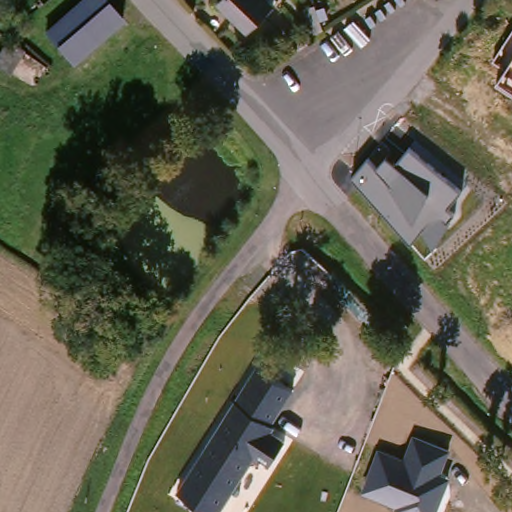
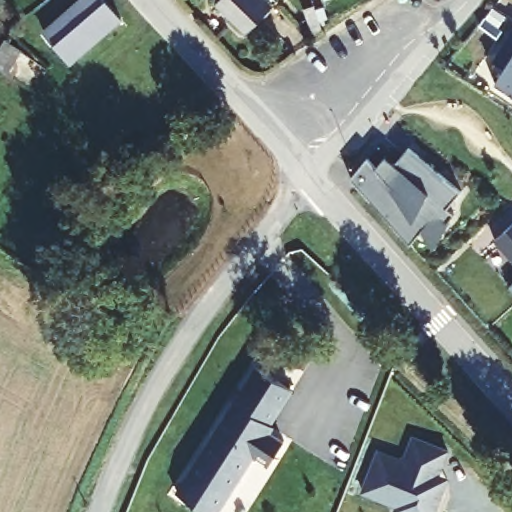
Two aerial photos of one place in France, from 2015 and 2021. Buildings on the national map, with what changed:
unchanged [(103,0),(120,20),(70,63),(40,29),(74,0),(103,0)]
unchanged [(244,34),(214,5),(218,0),(262,0),(270,9),(244,34)]
unchanged [(301,6),(325,0),(333,25),(308,33),(301,6)]
unchanged [(498,80),(506,69),(492,62),(512,30),(512,99),(495,87),(498,80)]
unchanged [(422,229),(411,242),(351,177),(367,159),(377,167),(388,155),(397,163),(410,149),(462,191),(448,207),(454,214),(447,222),(449,224),(433,247),(422,229)]
new [(512,226),(512,260),(496,242),(512,226)]
new [(512,283),(512,290),(508,287),(512,283)]
unchanged [(258,364),(293,389),(271,423),(276,426),(272,432),(285,440),(268,466),(253,458),(219,512),(208,512),(176,489),(258,364)]
unchanged [(396,506),(362,492),(379,448),(404,457),(413,434),(451,448),(442,474),(449,476),(436,512),(393,512),(396,506)]

